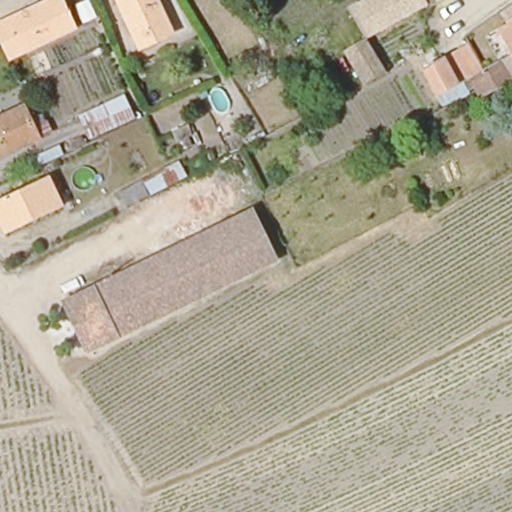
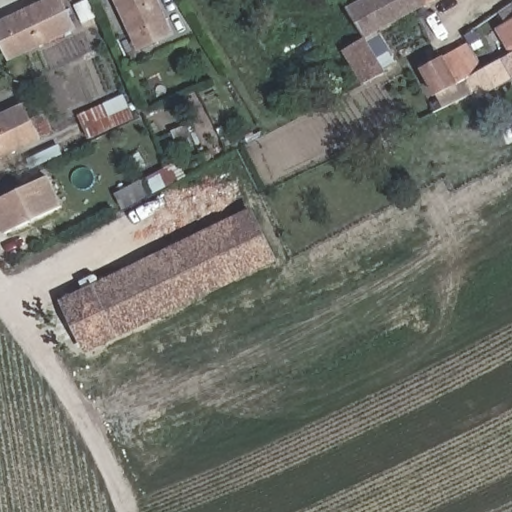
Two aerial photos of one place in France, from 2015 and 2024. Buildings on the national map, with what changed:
unchanged [(4,42),(0,34),(0,22),(11,16),(44,0),(61,0),(74,25),(26,48),(24,49),(10,56),(4,42)]
unchanged [(161,38),(155,41),(145,46),(121,0),(160,0),(169,19),(175,31),(161,38)]
unchanged [(348,9),(367,0),(430,0),(430,1),(397,18),(364,35),(353,18),(348,9)]
unchanged [(431,3),(430,1),(430,0),(437,0),(431,3)]
unchanged [(512,27),(512,37),(507,29),(512,27)]
unchanged [(345,50),(365,37),(381,63),(385,70),(365,83),(345,50)]
unchanged [(475,78),(490,70),(512,57),(512,81),(485,96),(484,93),(482,89),(472,95),(466,84),(475,78)]
unchanged [(430,74),(450,63),(463,86),(442,97),(430,74)]
unchanged [(80,117),(126,95),(136,119),(92,140),(80,117)]
unchanged [(0,167),(0,116),(19,107),(32,137),(9,149),(15,160),(0,167)]
unchanged [(117,194),(166,168),(159,145),(175,139),(172,131),(190,123),(195,137),(179,143),(190,176),(125,211),(117,194)]
unchanged [(66,210),(10,239),(0,218),(0,200),(49,175),(66,210)]
unchanged [(275,259),(88,347),(66,301),(252,210),(275,259)]

